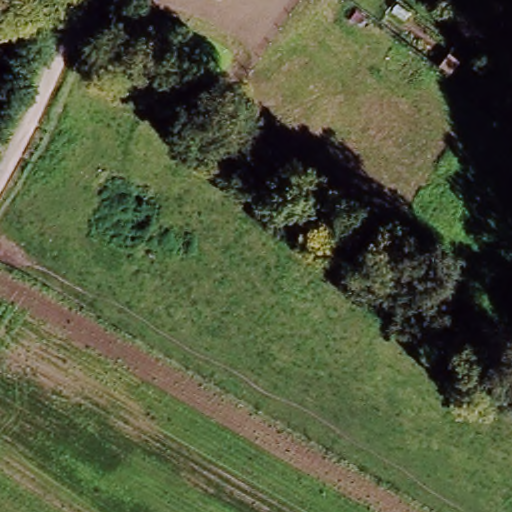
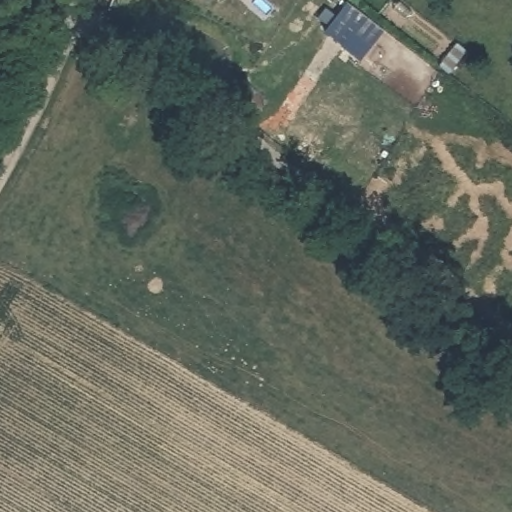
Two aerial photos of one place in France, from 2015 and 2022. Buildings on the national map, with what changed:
new [(387,30),(362,60),(324,31),(348,1),(387,30)]

